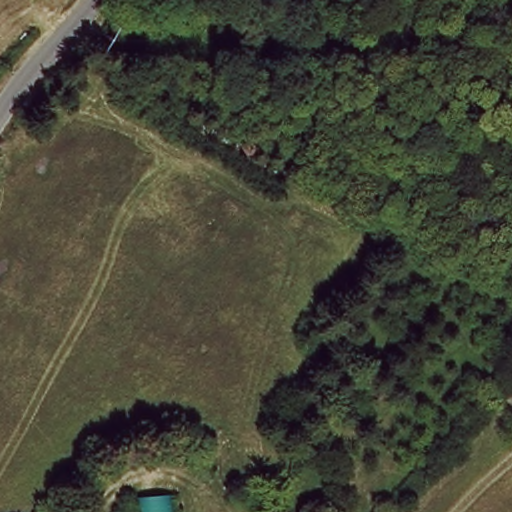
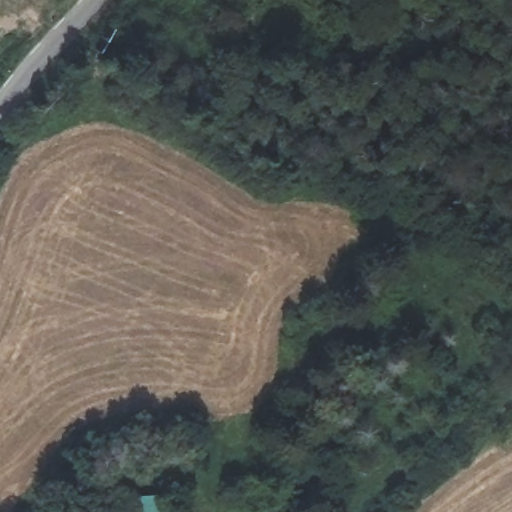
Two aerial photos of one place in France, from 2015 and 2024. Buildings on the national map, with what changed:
[]

